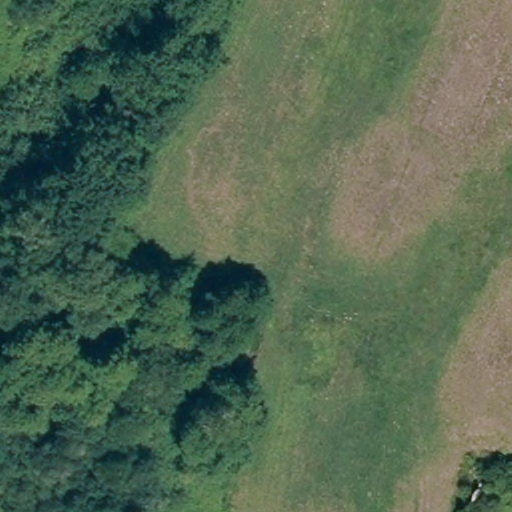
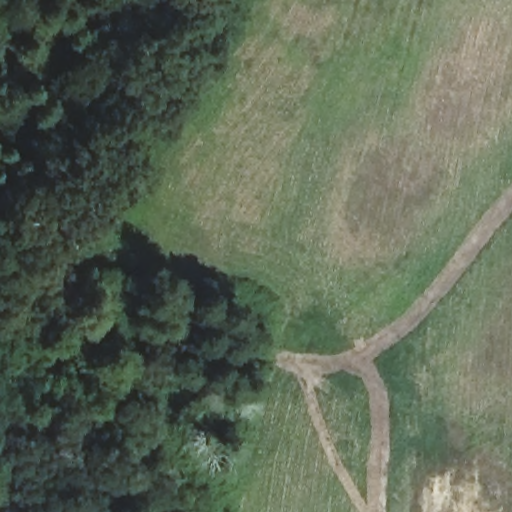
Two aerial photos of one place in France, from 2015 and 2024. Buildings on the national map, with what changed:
[]

